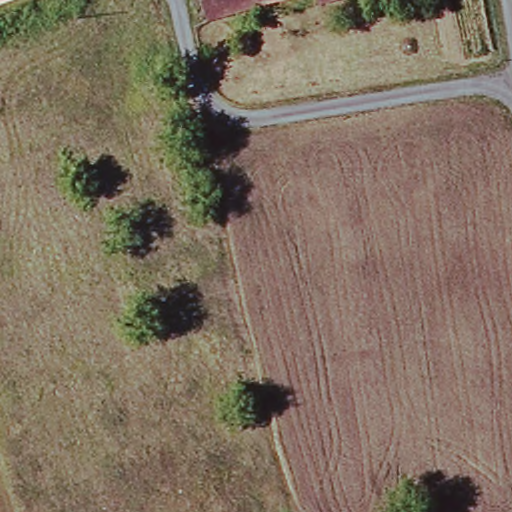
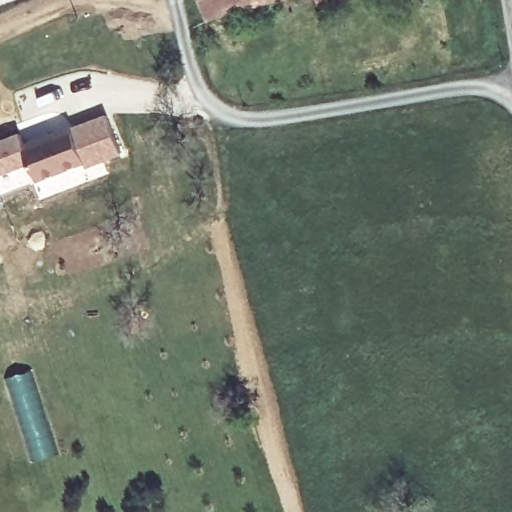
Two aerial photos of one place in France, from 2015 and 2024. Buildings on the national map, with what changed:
unchanged [(198,0),(271,0),(204,19),(198,0)]
new [(25,143),(71,124),(73,129),(106,114),(122,154),(87,167),(84,161),(39,181),(31,162),(0,175),(0,140),(20,132),(25,143)]

